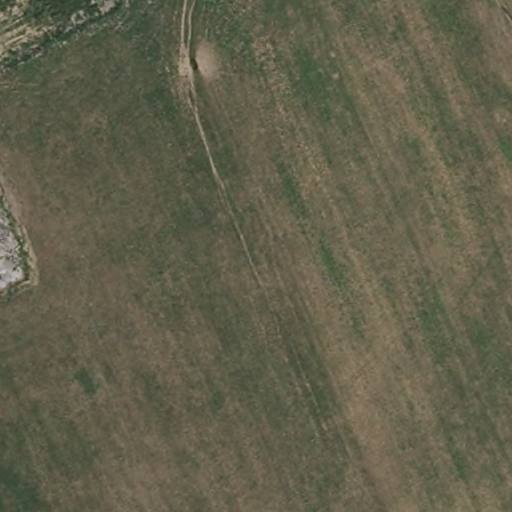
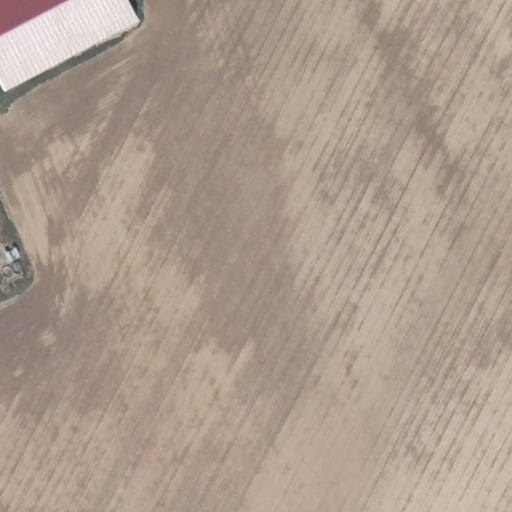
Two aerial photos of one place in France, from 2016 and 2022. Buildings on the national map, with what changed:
new [(136,19),(4,88),(0,79),(0,0),(126,0),(136,19)]

